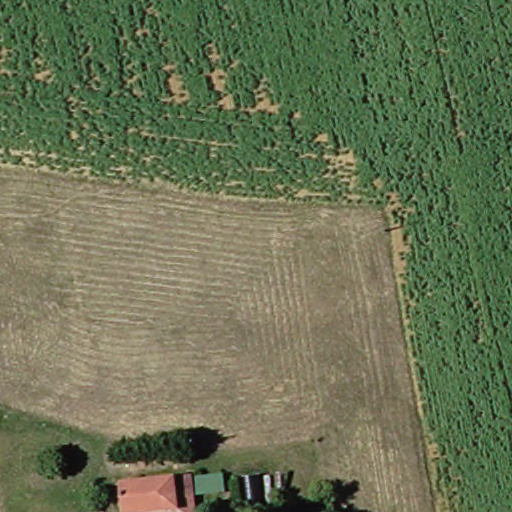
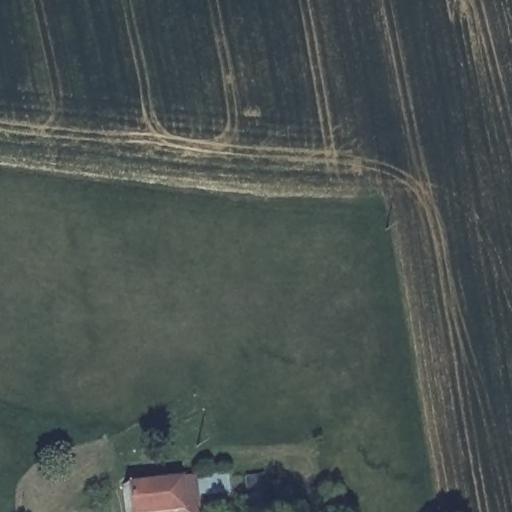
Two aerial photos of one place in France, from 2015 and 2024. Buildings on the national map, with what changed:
unchanged [(128,506),(131,481),(203,486),(202,504),(188,502),(187,512),(130,512),(131,506),(128,506)]

